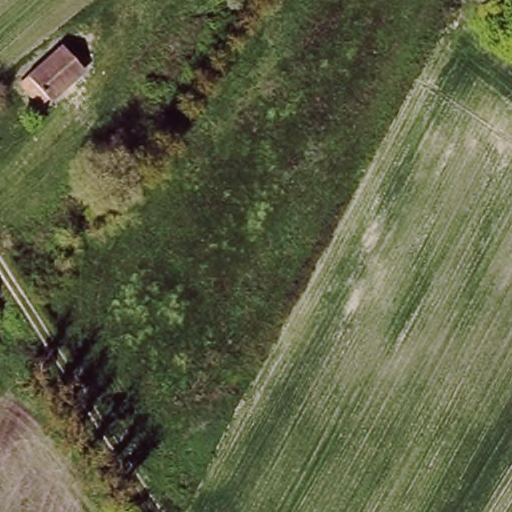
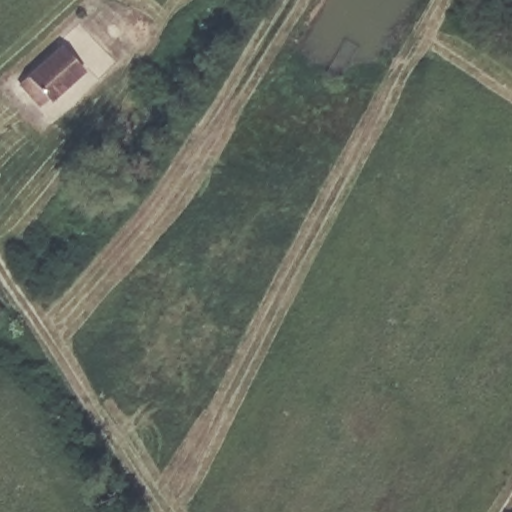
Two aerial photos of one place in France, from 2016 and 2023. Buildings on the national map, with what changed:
unchanged [(61,46),(83,70),(47,103),(43,98),(37,104),(20,83),(61,46)]

